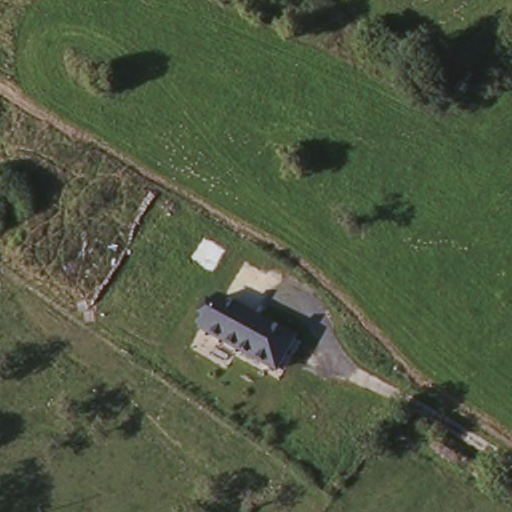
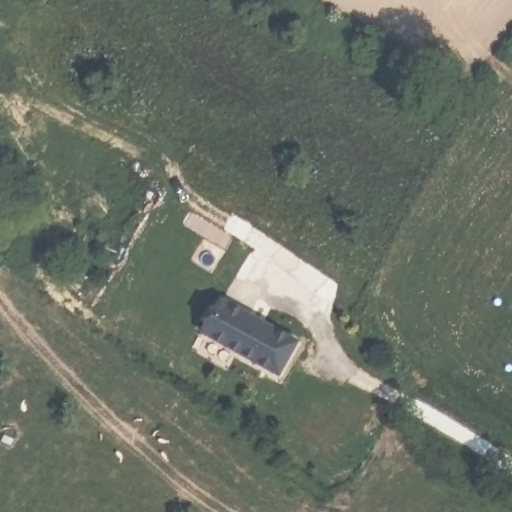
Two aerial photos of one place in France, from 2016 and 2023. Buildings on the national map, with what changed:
unchanged [(222,301),(297,346),(279,375),(202,334),(222,301)]

